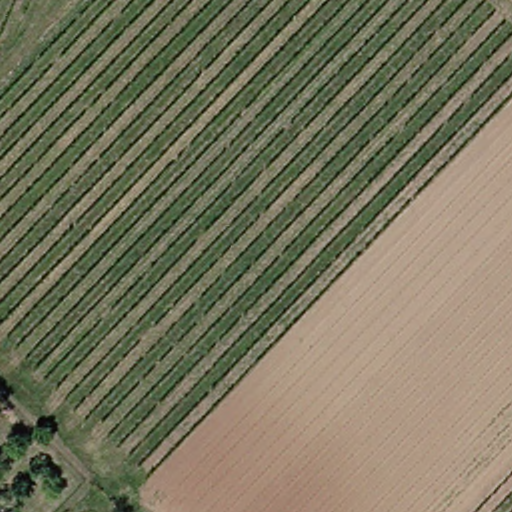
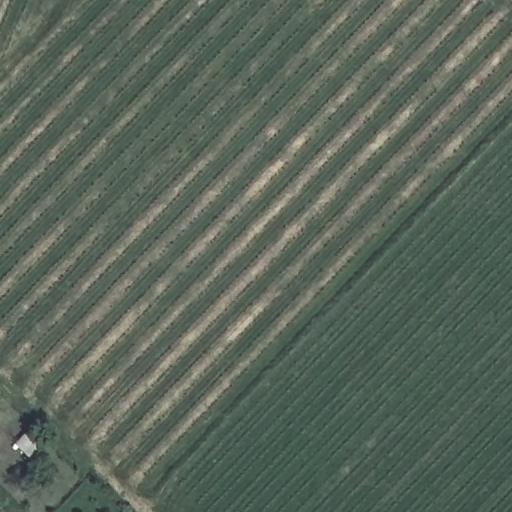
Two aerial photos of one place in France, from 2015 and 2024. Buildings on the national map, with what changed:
[]

